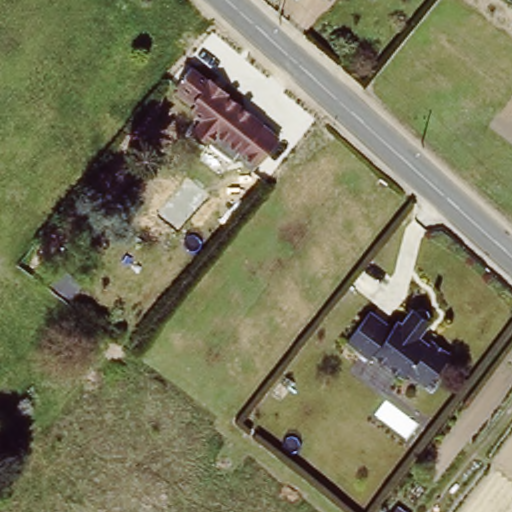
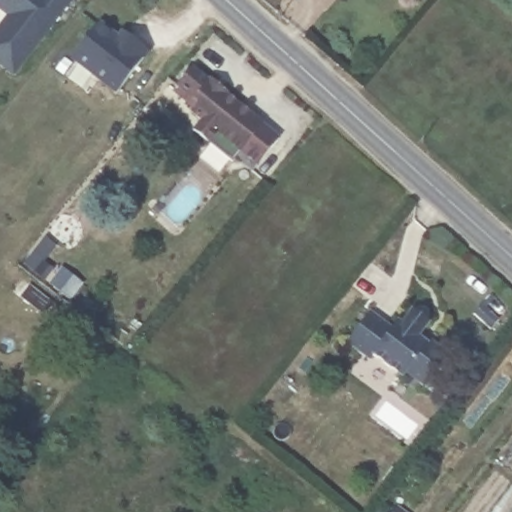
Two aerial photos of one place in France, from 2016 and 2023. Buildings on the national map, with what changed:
new [(71,0),(14,74),(0,63),(0,26),(8,15),(0,8),(0,0),(71,0)]
new [(117,37),(127,44),(118,36),(123,30),(132,38),(149,51),(116,92),(71,57),(99,22),(117,37)]
unchanged [(194,70),(282,143),(257,166),(218,135),(206,149),(185,135),(197,120),(171,97),(194,70)]
unchanged [(365,313),(387,333),(410,309),(435,328),(422,342),(446,360),(417,398),(343,342),(365,313)]

